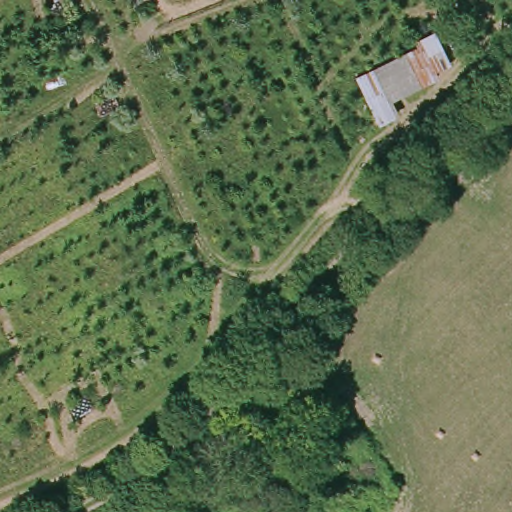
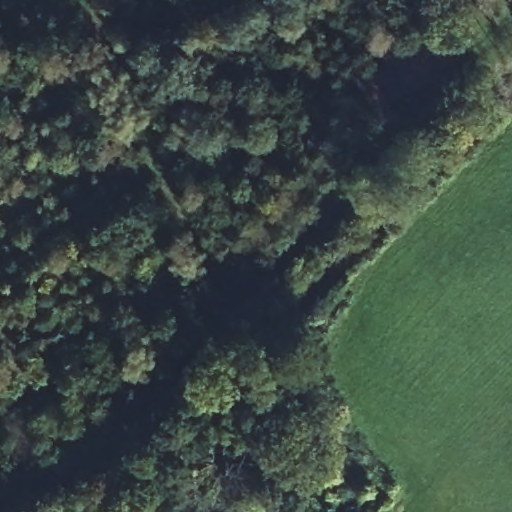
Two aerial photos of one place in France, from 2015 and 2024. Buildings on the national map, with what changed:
new [(399,114),(380,124),(356,77),(417,46),(414,41),(434,31),(451,63),(436,70),(439,76),(393,100),(399,114)]

